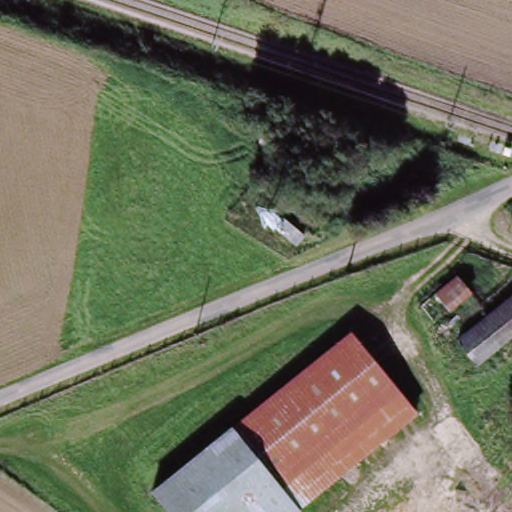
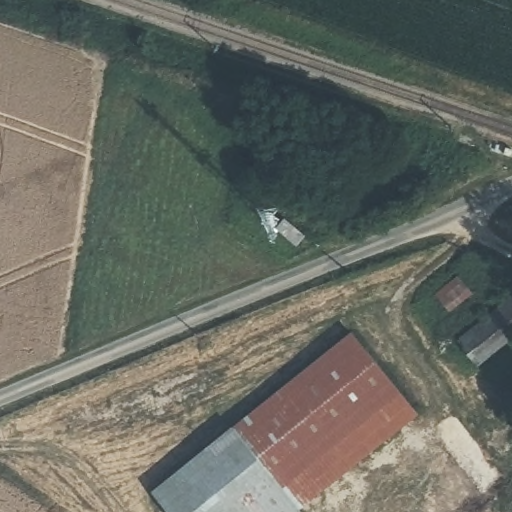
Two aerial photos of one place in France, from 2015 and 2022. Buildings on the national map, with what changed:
unchanged [(279,216),(298,233),(292,241),(273,224),(279,216)]
unchanged [(430,320),(419,310),(451,280),(462,290),(430,320)]
unchanged [(512,291),(512,292),(512,324),(475,358),(459,340),(512,291)]
unchanged [(347,333),(412,416),(420,425),(307,512),(164,512),(146,488),(347,333)]

